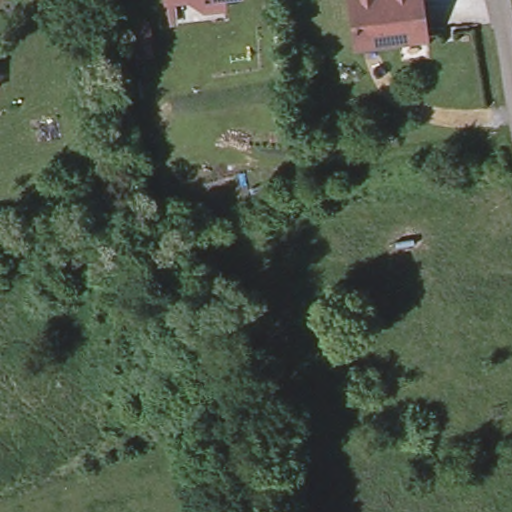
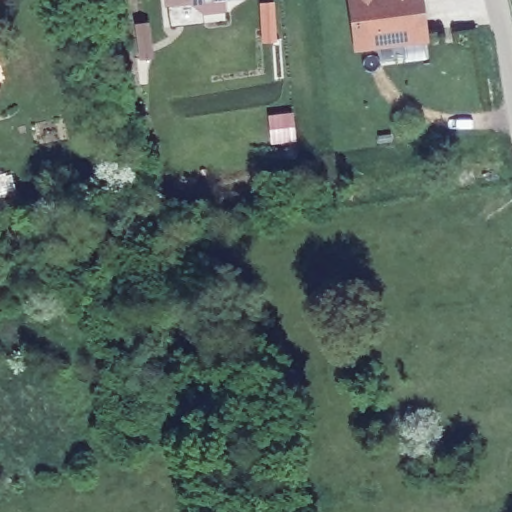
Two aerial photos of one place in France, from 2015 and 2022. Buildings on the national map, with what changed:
unchanged [(207,11),(195,1),(172,4),(172,0),(228,0),(229,9),(207,11)]
unchanged [(359,39),(354,0),(393,0),(397,34),(359,39)]
unchanged [(397,34),(393,0),(423,0),(427,30),(397,34)]

